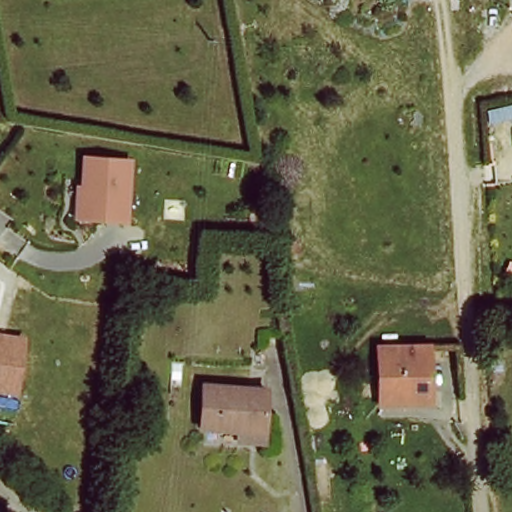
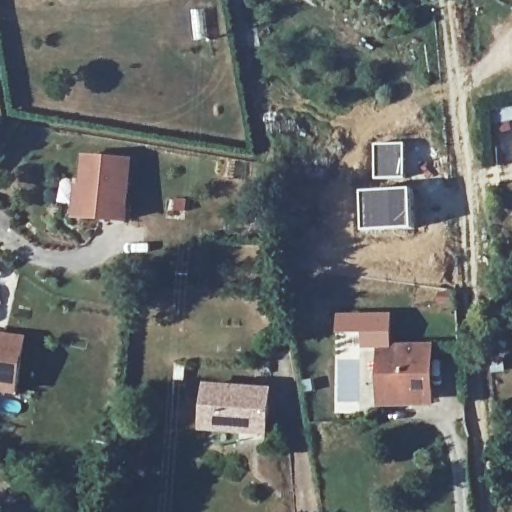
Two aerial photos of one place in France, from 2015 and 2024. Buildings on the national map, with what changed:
new [(405,141),(406,179),(373,180),(371,142),(405,141)]
unchanged [(127,159),(122,219),(77,215),(82,155),(127,159)]
new [(412,187),(415,229),(363,232),(361,190),(412,187)]
new [(335,313),(392,312),(393,346),(362,350),(361,333),(335,333),(335,313)]
unchanged [(27,337),(20,397),(0,395),(0,334),(27,337)]
unchanged [(385,408),(384,394),(382,351),(434,350),(435,401),(416,402),(415,409),(385,408)]
unchanged [(271,436),(209,436),(211,390),(271,390),(271,436)]

